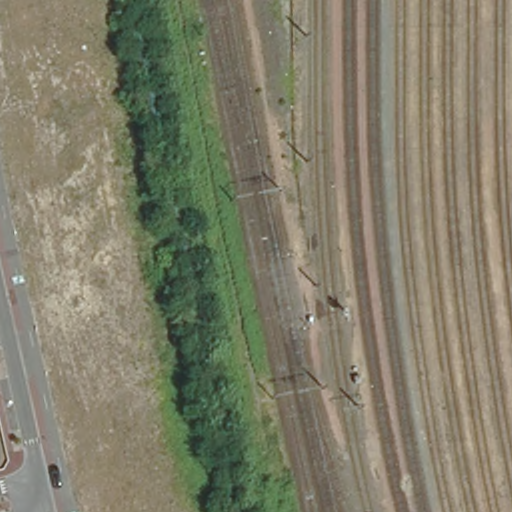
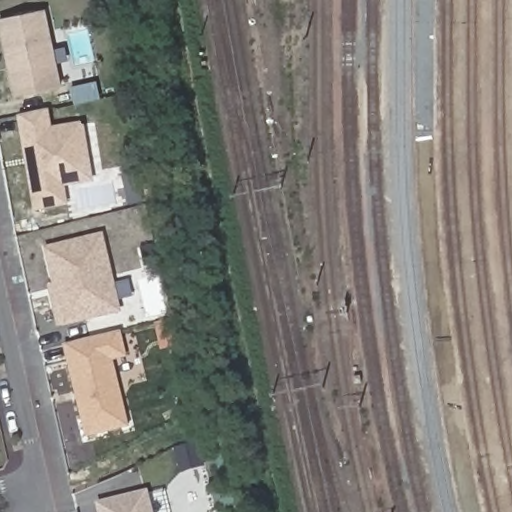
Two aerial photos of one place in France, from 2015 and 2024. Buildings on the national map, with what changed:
new [(14,94),(0,27),(0,17),(41,9),(45,29),(52,64),(56,85),(14,94)]
new [(87,83),(89,97),(72,100),(69,87),(87,83)]
new [(49,111),(51,127),(83,122),(94,183),(65,188),(69,207),(33,214),(16,119),(21,117),(49,111)]
new [(50,247),(101,235),(119,308),(58,323),(54,307),(50,290),(60,287),(50,247)]
new [(63,343),(118,330),(124,355),(110,358),(126,425),(85,435),(63,343)]
new [(149,512),(100,512),(98,504),(144,492),(149,512)]

